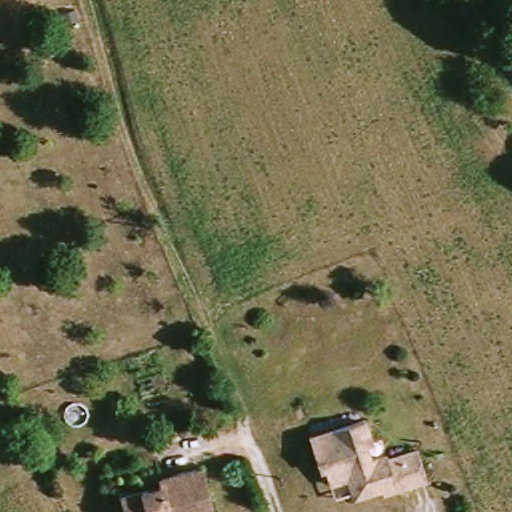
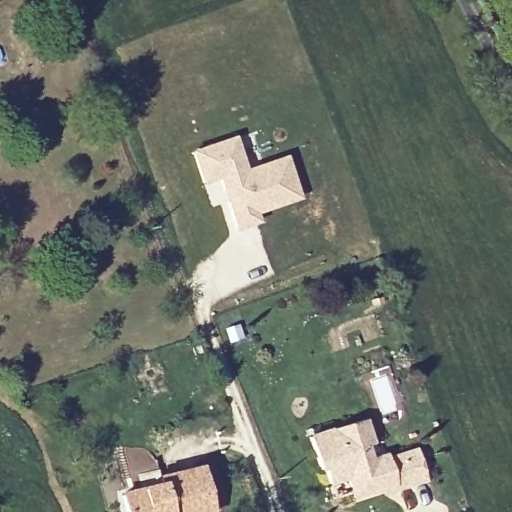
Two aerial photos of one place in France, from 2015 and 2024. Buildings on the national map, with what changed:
new [(235,135),(247,167),(287,154),(302,200),(259,215),(261,222),(234,232),(215,181),(203,185),(190,150),(235,135)]
unchanged [(386,494),(354,504),(348,484),(331,490),(325,475),(321,477),(311,443),(365,425),(373,449),(367,451),(371,465),(386,460),(387,464),(416,455),(427,487),(397,496),(388,500),(386,494)]
unchanged [(161,484),(160,477),(201,467),(212,510),(213,512),(125,512),(121,494),(161,484)]

